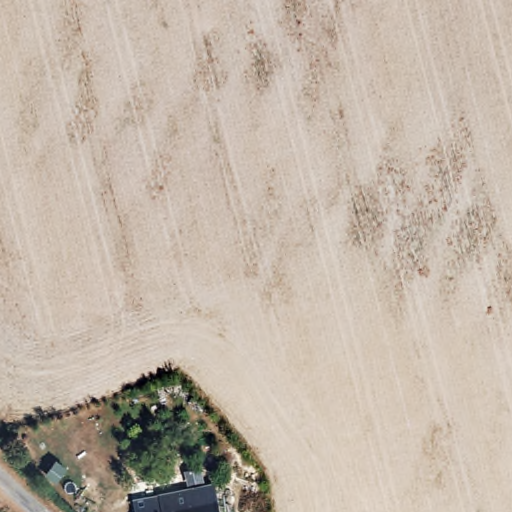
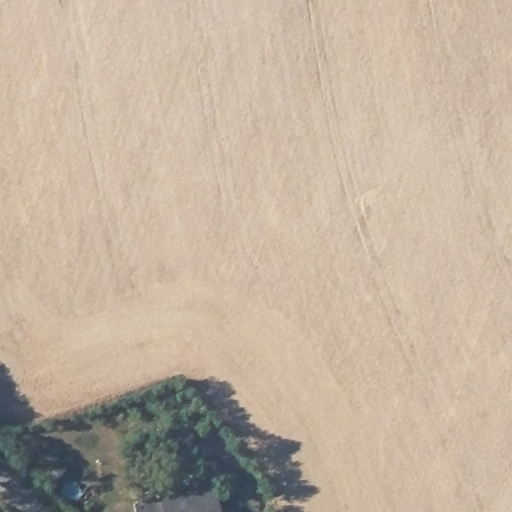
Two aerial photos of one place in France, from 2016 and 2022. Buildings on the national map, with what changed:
unchanged [(189,491),(215,486),(220,512),(194,512),(189,491)]
unchanged [(189,491),(194,512),(136,512),(134,503),(189,491)]

